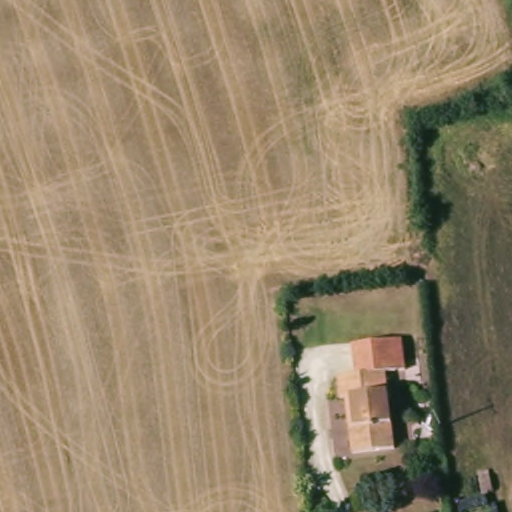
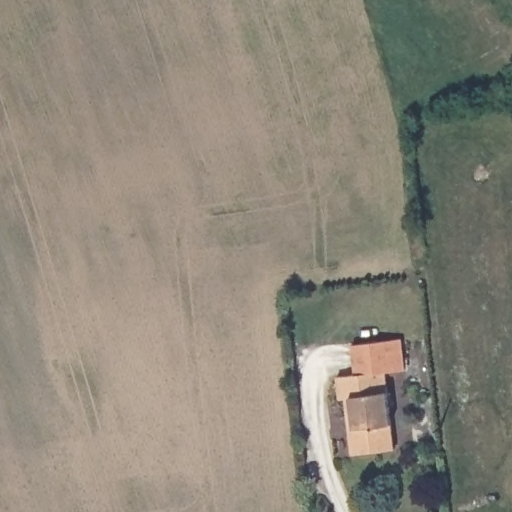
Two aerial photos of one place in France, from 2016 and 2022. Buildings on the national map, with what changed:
unchanged [(344,395),(341,374),(360,372),(357,341),(406,336),(410,367),(392,370),(400,447),(356,452),(353,432),(350,395),(344,395)]

